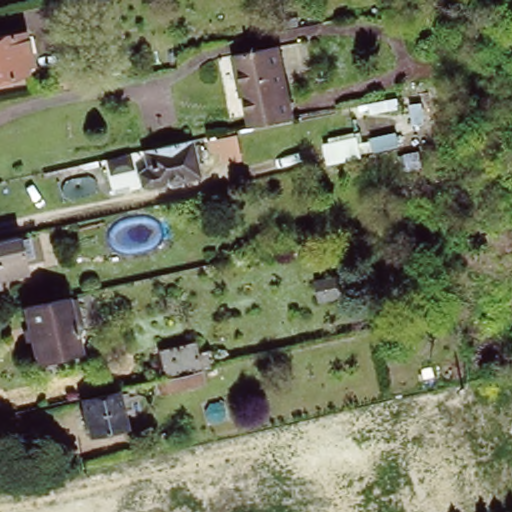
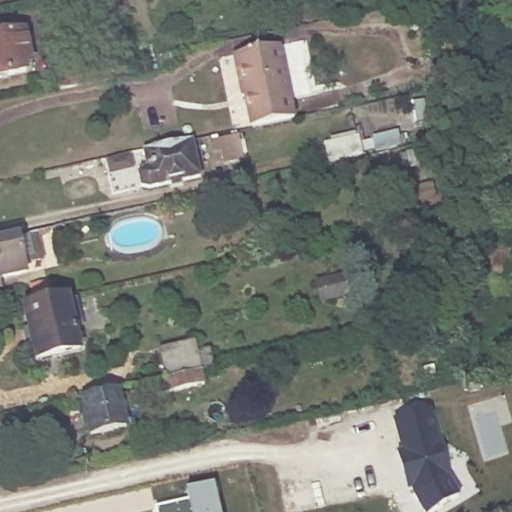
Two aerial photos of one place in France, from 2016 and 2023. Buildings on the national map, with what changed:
unchanged [(34,64),(25,65),(27,73),(0,79),(0,37),(26,31),(34,64)]
unchanged [(254,125),(248,95),(244,95),(235,52),(279,44),(294,116),(254,125)]
unchanged [(66,88),(63,72),(110,63),(113,79),(66,88)]
unchanged [(348,160),(344,143),(371,136),(375,154),(348,160)]
unchanged [(150,151),(193,142),(201,179),(152,190),(142,186),(139,175),(147,169),(144,153),(150,151)]
unchanged [(28,274),(0,280),(0,242),(20,237),(28,274)]
unchanged [(83,353),(39,364),(26,310),(70,299),(83,353)]
unchanged [(162,395),(159,382),(167,381),(159,350),(195,341),(198,353),(210,350),(215,370),(202,373),(205,385),(162,395)]
unchanged [(117,392),(126,427),(91,436),(82,400),(117,392)]
new [(435,512),(422,512),(413,496),(411,490),(408,491),(396,453),(401,451),(393,420),(430,410),(451,480),(460,495),(435,512)]
demolished [(343,483),(350,512),(323,512),(317,490),(343,483)]
new [(155,508),(189,500),(187,491),(214,485),(220,512),(155,512),(155,508)]

